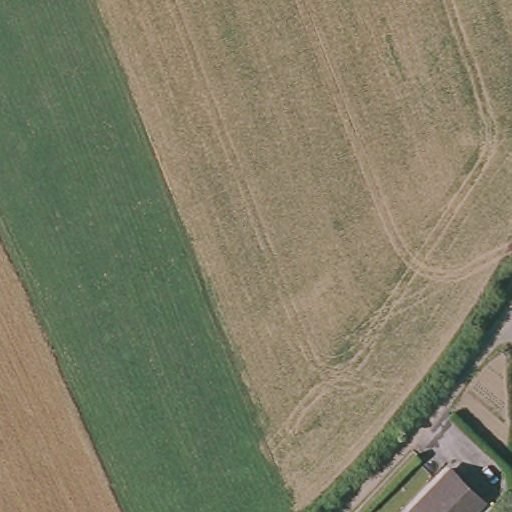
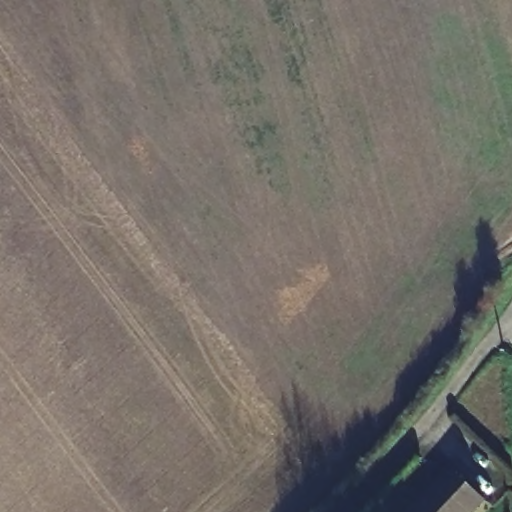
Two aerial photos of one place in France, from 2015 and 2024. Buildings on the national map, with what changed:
unchanged [(446,471),(477,501),(466,512),(407,512),(446,471)]

